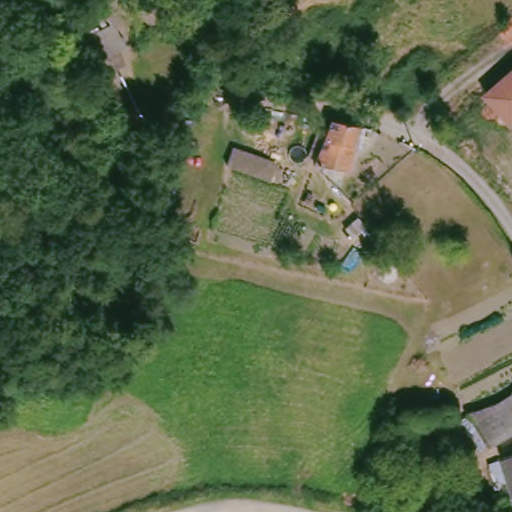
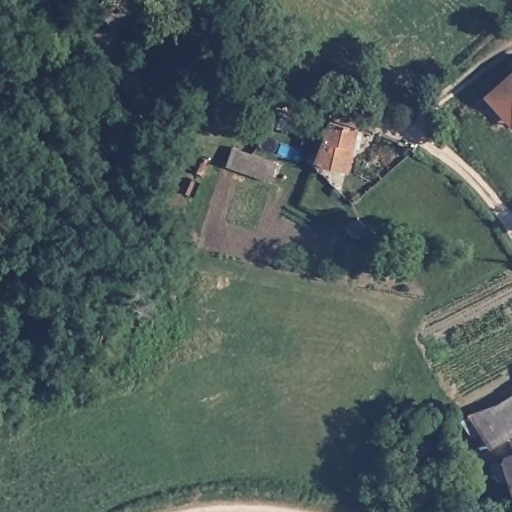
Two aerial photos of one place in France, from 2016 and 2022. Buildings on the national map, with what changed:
unchanged [(114,28),(131,48),(94,67),(80,45),(110,27),(92,6),(99,0),(123,0),(134,11),(114,28)]
unchanged [(512,71),(512,127),(486,95),(512,71)]
unchanged [(351,149),(347,148),(342,168),(324,163),(322,171),(315,163),(328,121),(358,129),(351,149)]
unchanged [(226,167),(233,144),(279,159),(273,180),(226,167)]
unchanged [(473,422),(468,413),(497,402),(512,394),(512,432),(486,443),(473,422)]
unchanged [(512,456),(512,480),(506,458),(512,456)]

